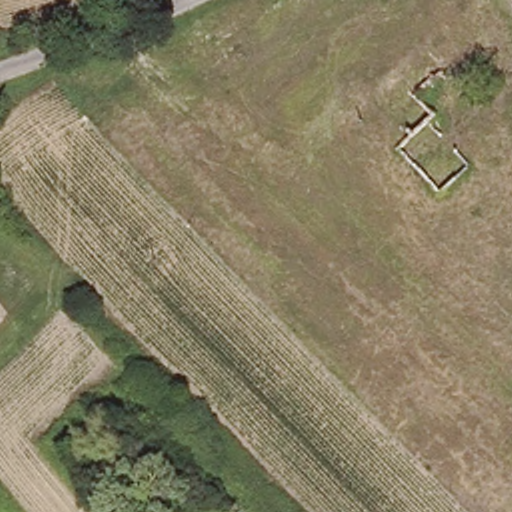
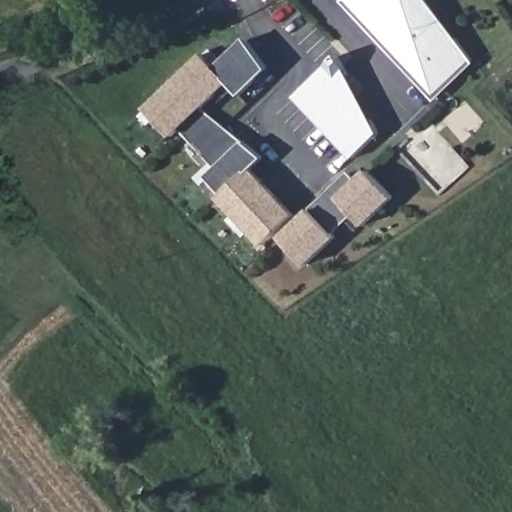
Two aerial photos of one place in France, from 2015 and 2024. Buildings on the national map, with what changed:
new [(428,0),(476,63),(437,102),(342,2),(345,0),(428,0)]
new [(204,109),(244,142),(265,159),(254,169),(298,216),(301,219),(312,208),(351,172),(357,179),(368,170),(396,199),(366,226),(356,215),(335,235),(338,239),(308,267),(280,238),(284,234),(280,231),(265,247),(219,198),(223,194),(207,177),(217,168),(182,130),(174,138),(146,109),(205,53),(217,67),(247,40),(270,70),(242,96),(231,85),(204,109)]
new [(353,159),(295,96),(327,66),(333,61),(338,56),(343,62),(347,71),(378,133),(353,159)]
demolished [(412,130),(382,100),(406,79),(435,109),(430,114),(412,130)]

